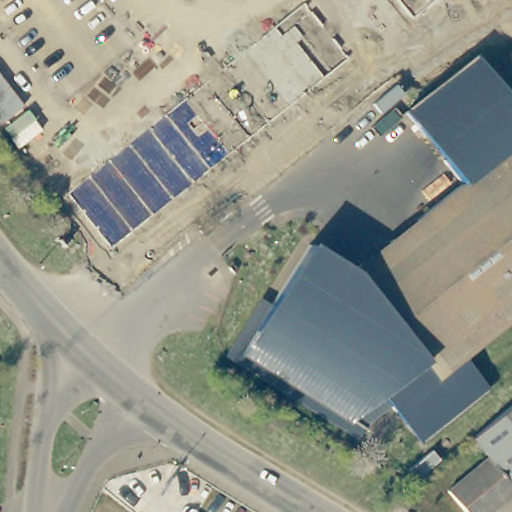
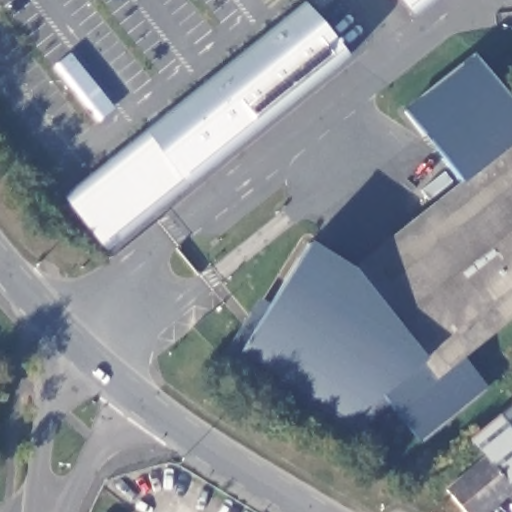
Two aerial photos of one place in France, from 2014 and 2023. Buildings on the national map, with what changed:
new [(413,17),(399,0),(436,0),(413,17)]
new [(305,4),(348,58),(190,185),(107,250),(63,198),(305,4)]
unchanged [(470,356),(494,386),(425,441),(401,411),(393,419),(380,403),(349,428),(244,350),(322,247),(353,268),(356,271),(466,185),(409,114),(480,57),(512,97),(512,323),(470,356)]
unchanged [(512,408),(512,473),(494,453),(480,435),(512,408)]
unchanged [(512,473),(512,492),(488,512),(478,512),(455,485),(494,453),(512,473)]

